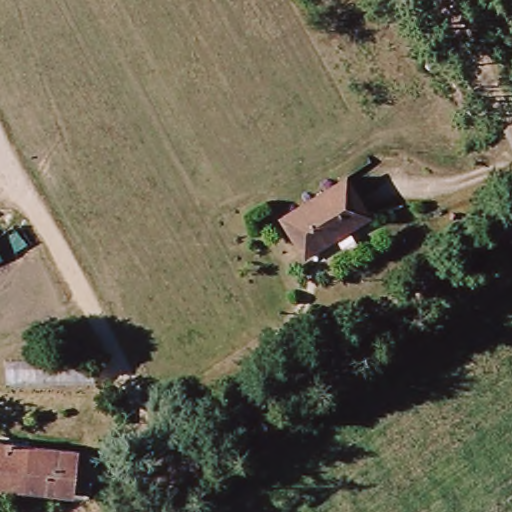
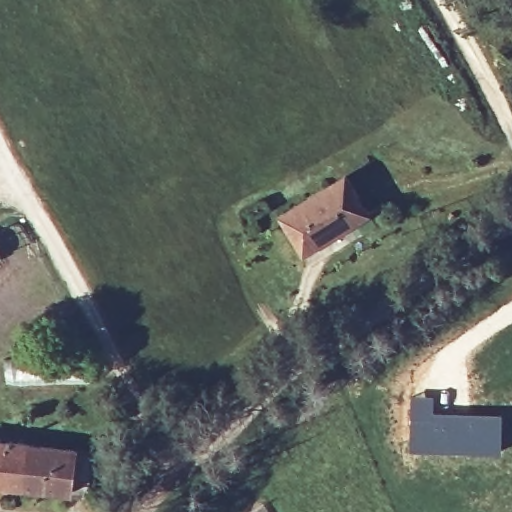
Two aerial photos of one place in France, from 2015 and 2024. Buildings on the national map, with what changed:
unchanged [(288,216),(350,174),(374,210),(313,252),(288,216)]
unchanged [(0,258),(0,253),(2,257),(0,258)]
unchanged [(97,359),(98,381),(9,382),(10,359),(97,359)]
new [(410,396),(434,394),(435,410),(502,412),(500,455),(408,451),(410,396)]
unchanged [(90,485),(0,477),(0,436),(96,445),(90,485)]

